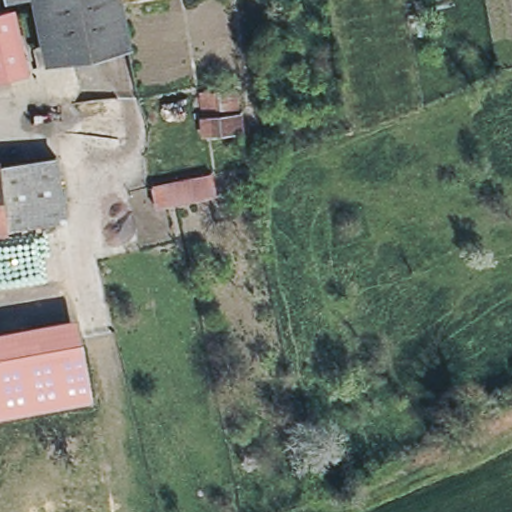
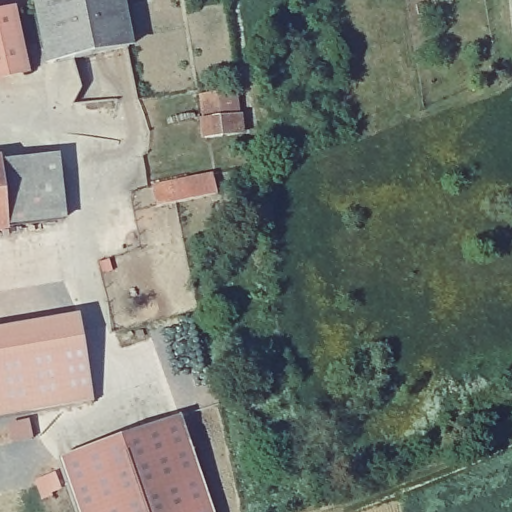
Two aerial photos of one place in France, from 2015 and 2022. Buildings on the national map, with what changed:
unchanged [(122,49),(48,63),(35,0),(112,0),(116,20),(122,49)]
unchanged [(5,10),(4,7),(13,5),(15,12),(6,15),(19,72),(0,77),(0,11),(5,10)]
unchanged [(223,95),(240,93),(245,128),(203,134),(199,99),(223,95)]
unchanged [(57,156),(64,219),(0,227),(0,163),(57,156)]
unchanged [(182,181),(211,175),(215,196),(211,196),(185,201),(174,204),(154,207),(151,187),(156,186),(182,181)]
unchanged [(0,415),(0,328),(76,316),(93,400),(0,415)]
new [(214,512),(77,512),(58,458),(180,416),(214,512)]

